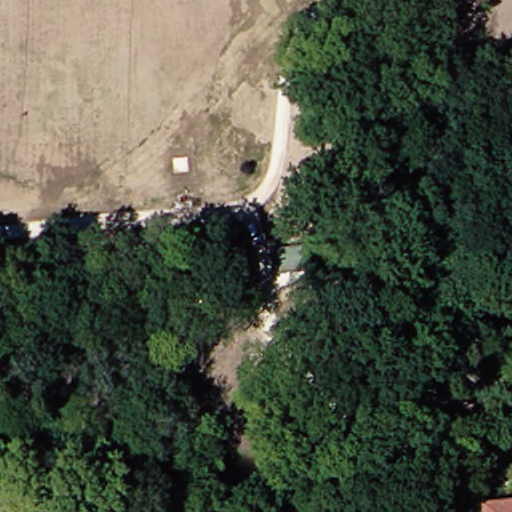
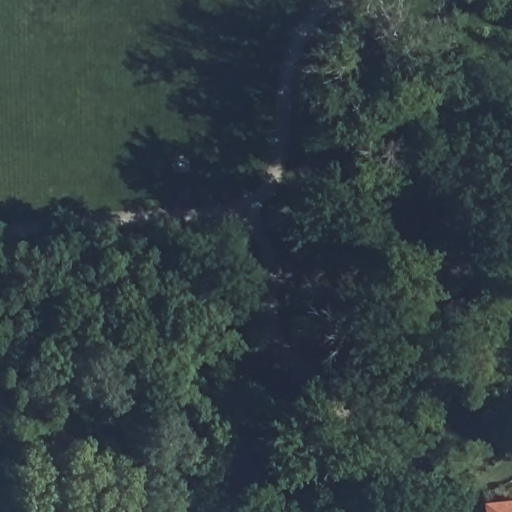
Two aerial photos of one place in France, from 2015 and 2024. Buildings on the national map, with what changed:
unchanged [(512,505),(512,512),(497,512),(497,506),(512,505)]

